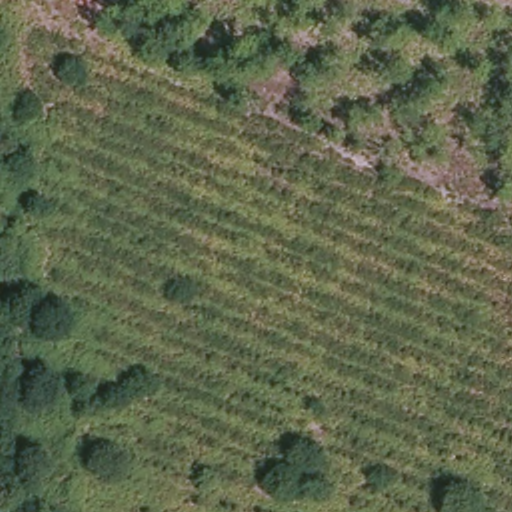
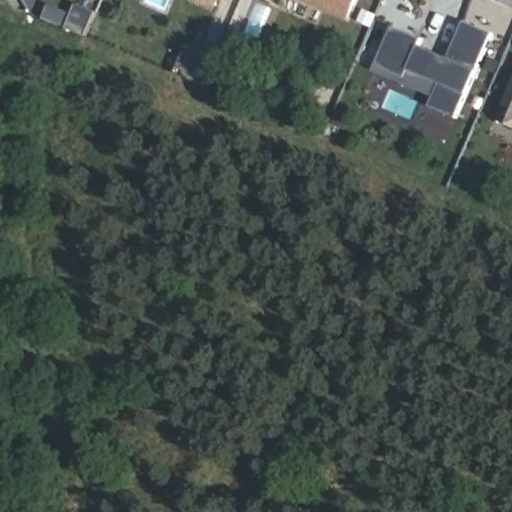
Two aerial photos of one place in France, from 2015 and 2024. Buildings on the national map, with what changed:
new [(215,10),(193,0),(220,0),(215,10)]
new [(349,21),(299,0),(358,0),(349,21)]
new [(430,106),(434,96),(374,71),(393,27),(422,40),(420,45),(450,59),(466,22),(493,34),(457,117),(430,106)]
new [(182,44),(222,61),(210,88),(171,72),(182,44)]
new [(512,83),(512,104),(504,101),(512,83)]
new [(512,119),(512,126),(509,125),(512,119)]

